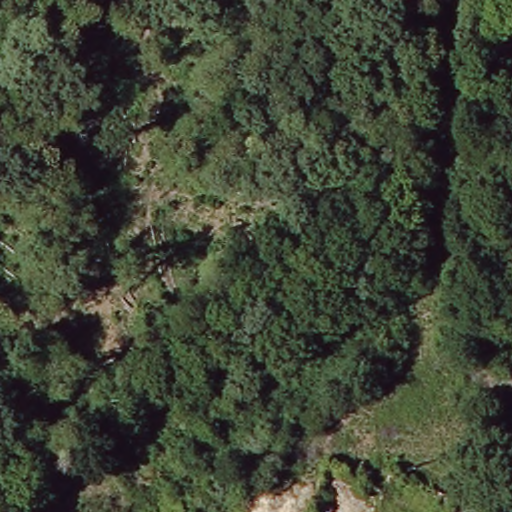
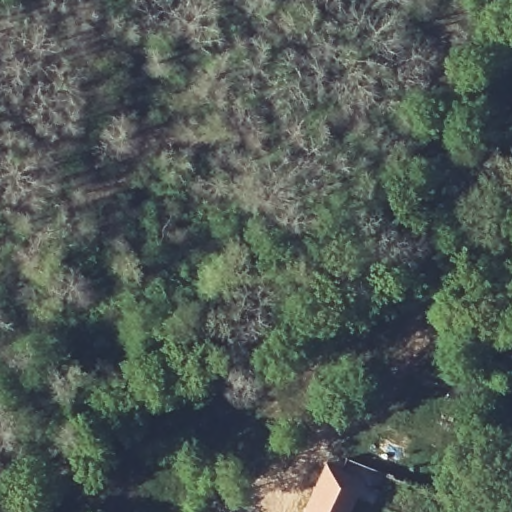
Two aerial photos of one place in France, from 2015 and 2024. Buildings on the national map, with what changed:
new [(328,467),(362,482),(348,512),(307,512),(328,467)]
demolished [(312,490),(354,507),(352,512),(304,512),(312,490)]

